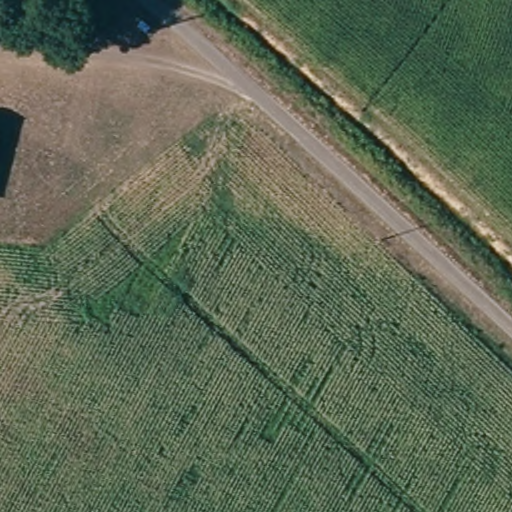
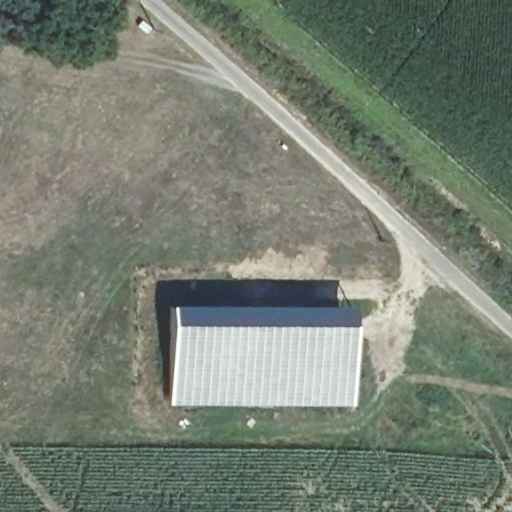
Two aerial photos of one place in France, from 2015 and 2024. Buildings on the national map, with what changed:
new [(352,305),(351,406),(170,405),(170,303),(352,305)]

